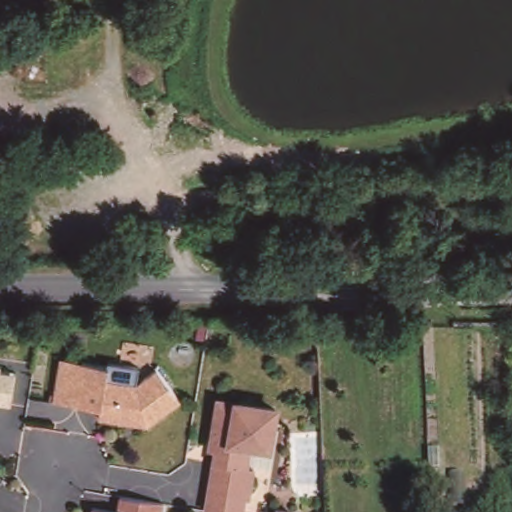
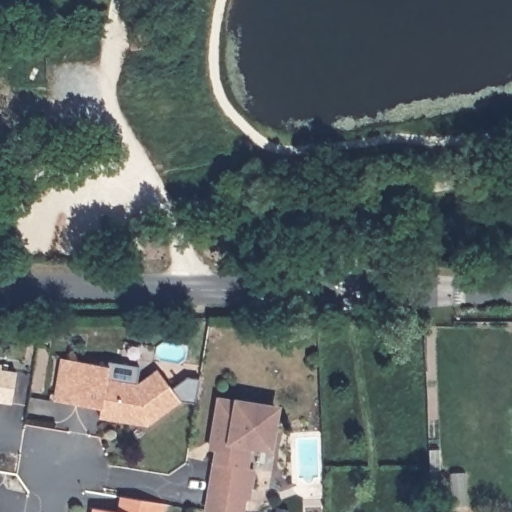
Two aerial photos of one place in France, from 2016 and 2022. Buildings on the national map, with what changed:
unchanged [(105,370),(103,382),(133,387),(152,373),(177,404),(144,429),(95,421),(97,412),(71,407),(78,365),(105,370)]
unchanged [(200,491),(207,448),(205,448),(206,438),(213,398),(270,407),(263,445),(244,442),(241,465),(247,467),(242,498),(238,497),(235,512),(223,512),(197,508),(200,491)]
unchanged [(162,508),(161,512),(115,512),(118,500),(162,508)]
unchanged [(103,512),(88,512),(89,510),(103,512)]

